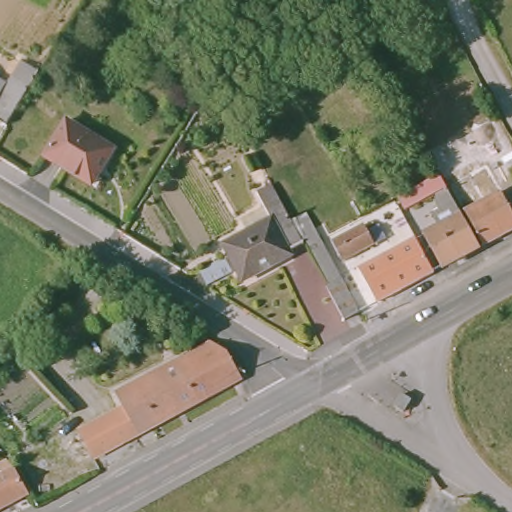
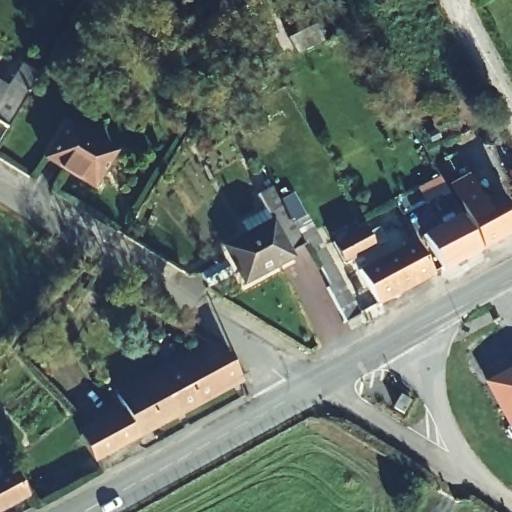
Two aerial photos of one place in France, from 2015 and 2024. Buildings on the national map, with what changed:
unchanged [(241,0),(255,0),(244,5),(241,0)]
unchanged [(288,38),(314,24),(322,41),(311,46),(296,54),(288,38)]
unchanged [(40,73),(7,126),(0,122),(0,80),(9,85),(22,62),(40,73)]
unchanged [(92,183),(45,154),(67,119),(114,148),(92,183)]
unchanged [(512,170),(512,178),(509,172),(512,170)]
unchanged [(469,174),(485,207),(465,218),(448,184),(469,174)]
unchanged [(287,217),(299,239),(275,252),(277,257),(239,278),(219,242),(242,229),(236,217),(260,204),(252,189),(269,180),(287,217)]
unchanged [(440,183),(479,254),(442,274),(423,241),(437,234),(432,222),(439,219),(434,210),(437,209),(434,203),(405,218),(398,205),(440,183)]
unchanged [(501,198),(512,219),(512,237),(483,252),(465,218),(501,198)]
unchanged [(299,239),(287,217),(300,210),(354,309),(340,317),(334,305),(299,239)]
unchanged [(380,235),(338,259),(327,239),(350,227),(352,233),(373,222),(380,235)]
unchanged [(359,275),(415,245),(433,279),(377,309),(359,275)]
unchanged [(195,268),(220,255),(227,269),(202,282),(195,268)]
unchanged [(65,451),(78,444),(77,441),(94,432),(90,422),(122,405),(119,399),(167,373),(162,364),(200,344),(206,356),(210,354),(217,365),(225,361),(238,384),(89,466),(87,463),(75,469),(65,451)]
new [(512,430),(485,382),(512,368),(512,430)]
unchanged [(405,414),(395,408),(404,396),(412,401),(405,414)]
unchanged [(12,469),(25,494),(12,502),(0,508),(0,475),(12,469)]

